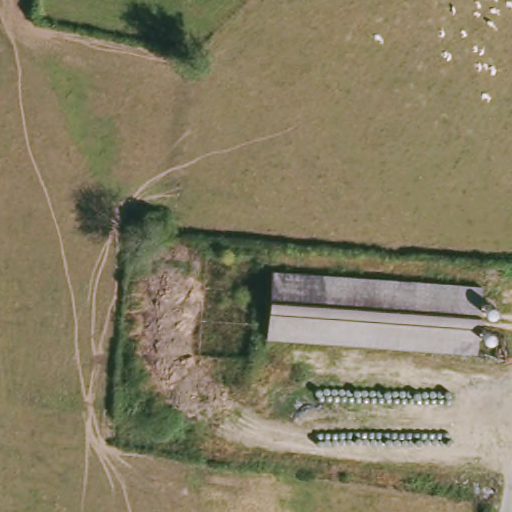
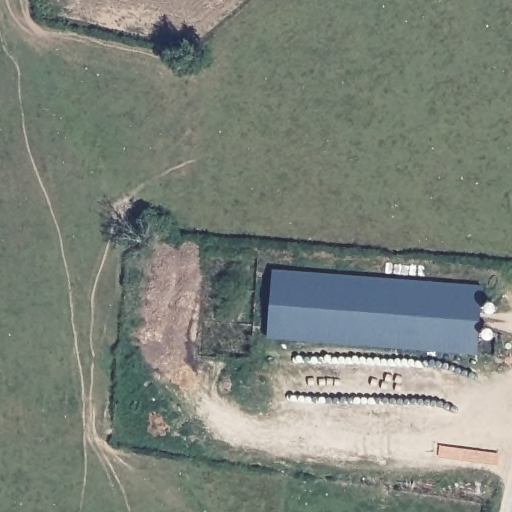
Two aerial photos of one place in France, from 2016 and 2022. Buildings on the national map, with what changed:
unchanged [(272,331),(280,270),(492,288),(486,350),(272,331)]

